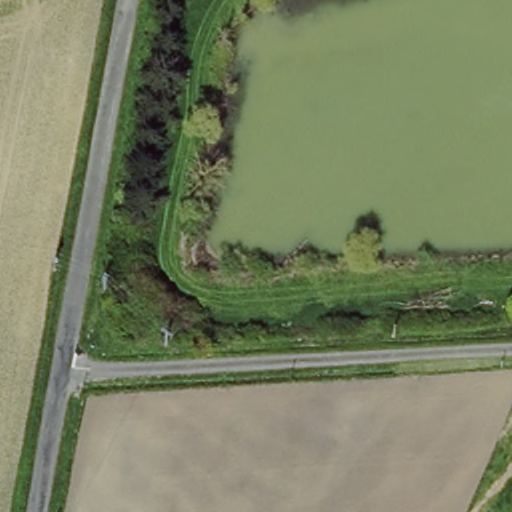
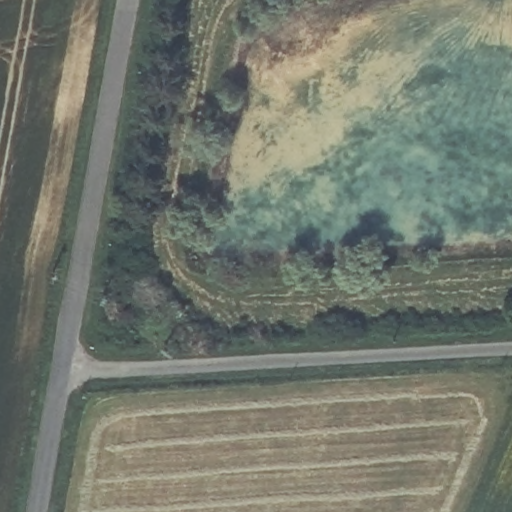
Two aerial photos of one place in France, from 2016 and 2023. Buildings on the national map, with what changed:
unchanged [(116,335),(115,349),(99,347),(101,333),(116,335)]

